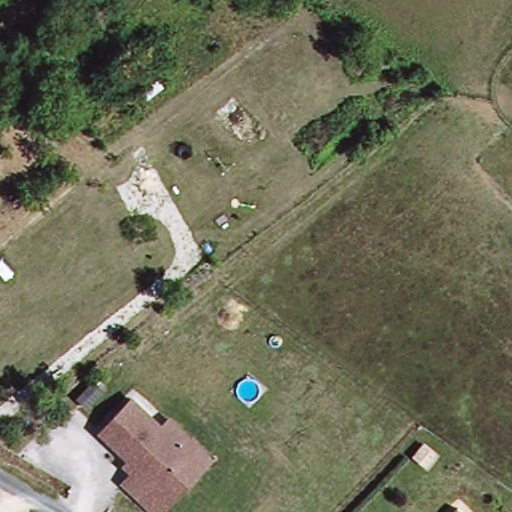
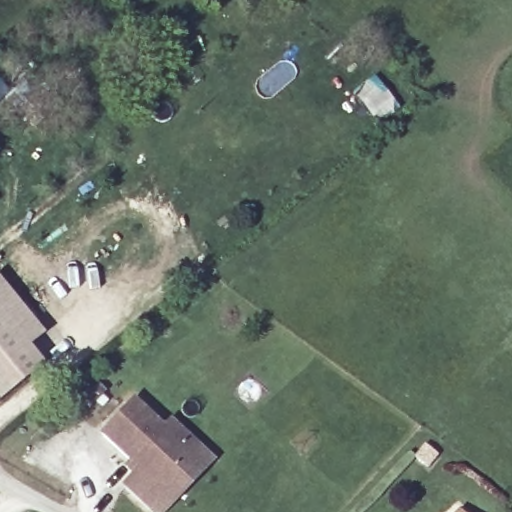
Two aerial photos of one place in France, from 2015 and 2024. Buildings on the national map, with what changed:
unchanged [(18,108),(13,114),(3,100),(27,79),(55,109),(37,128),(18,108)]
new [(45,332),(28,345),(45,366),(0,404),(0,280),(45,332)]
unchanged [(134,461),(102,435),(133,400),(165,425),(193,449),(165,485),(170,488),(157,506),(130,484),(138,473),(130,466),(134,461)]
unchanged [(216,454),(169,512),(164,512),(157,506),(170,488),(165,485),(193,449),(165,425),(170,417),(216,454)]

